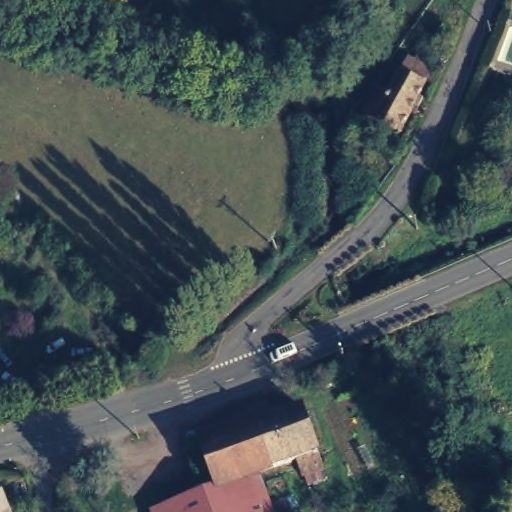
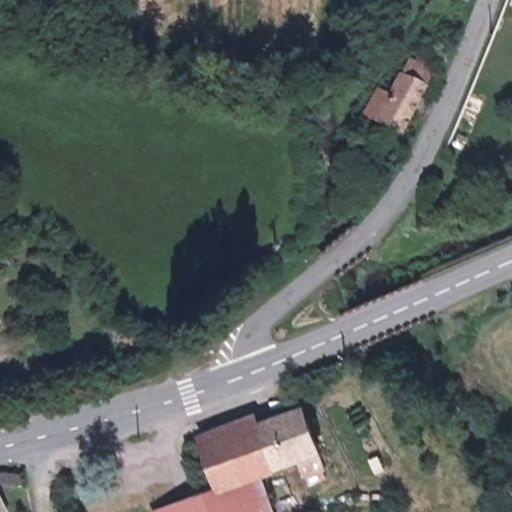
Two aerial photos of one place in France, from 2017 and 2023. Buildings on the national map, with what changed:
unchanged [(420,61),(417,69),(425,72),(413,100),(418,102),(414,112),(408,108),(397,136),(358,117),(370,90),(390,99),(405,65),(408,66),(412,57),(420,61)]
unchanged [(322,310),(319,298),(333,295),(337,306),(322,310)]
unchanged [(300,405),(317,448),(248,473),(215,483),(201,440),(300,405)]
unchanged [(150,507),(215,483),(248,473),(263,512),(152,512),(150,507)]
unchanged [(0,511),(1,512),(0,512),(0,511)]

